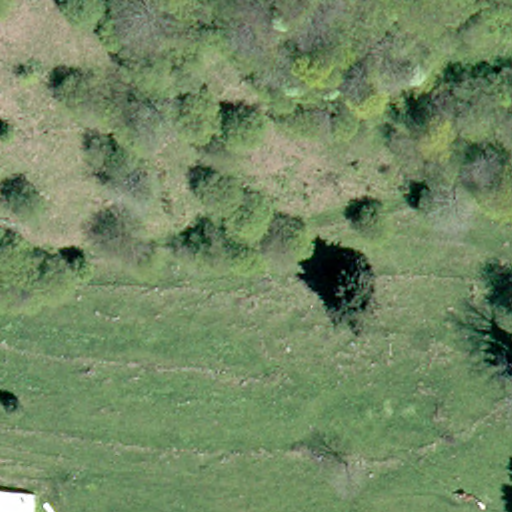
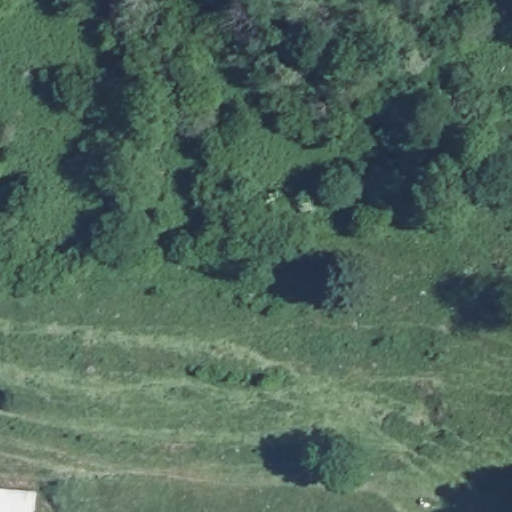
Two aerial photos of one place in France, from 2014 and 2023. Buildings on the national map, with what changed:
unchanged [(25,495),(23,512),(0,512),(0,492),(25,495)]

